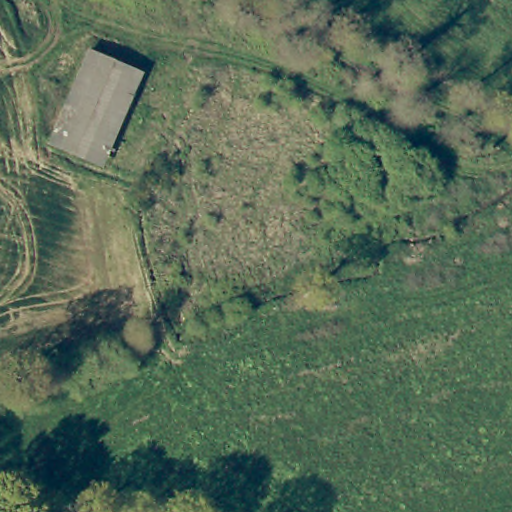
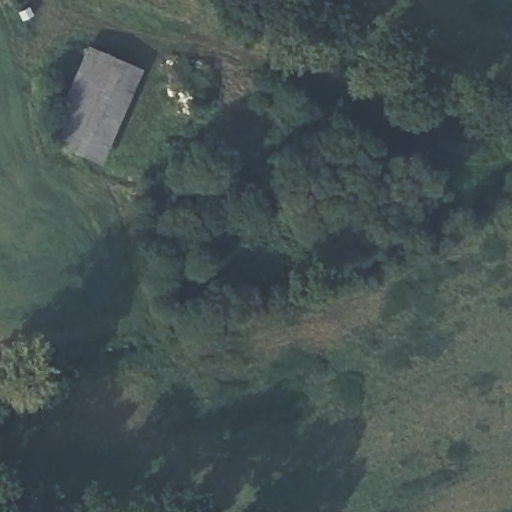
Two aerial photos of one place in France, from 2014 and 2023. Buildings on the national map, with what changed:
unchanged [(146,74),(109,164),(58,142),(49,139),(64,102),(86,50),(146,74)]

